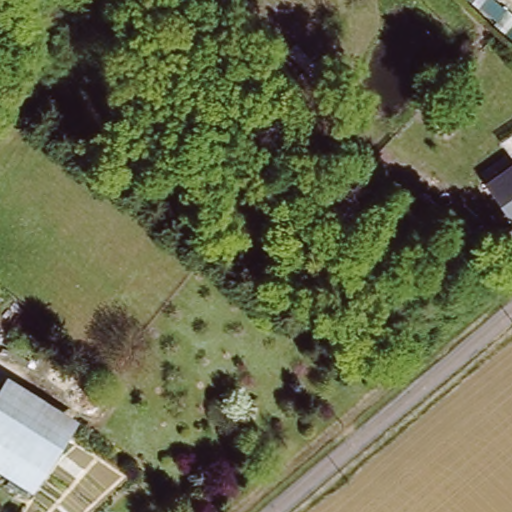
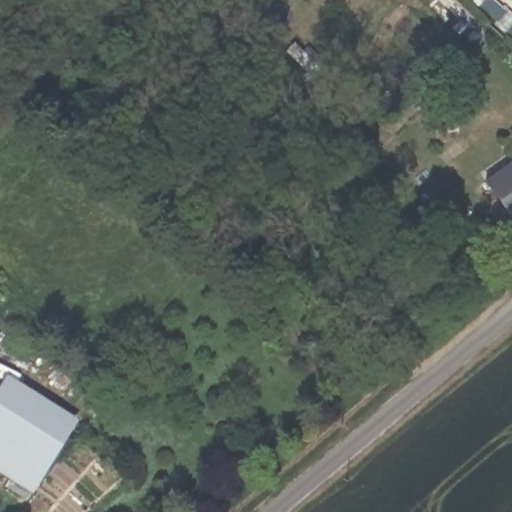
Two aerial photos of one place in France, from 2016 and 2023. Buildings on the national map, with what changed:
unchanged [(485,184),(512,166),(512,223),(510,225),(485,184)]
unchanged [(33,490),(0,471),(0,389),(6,379),(75,420),(65,436),(33,490)]

